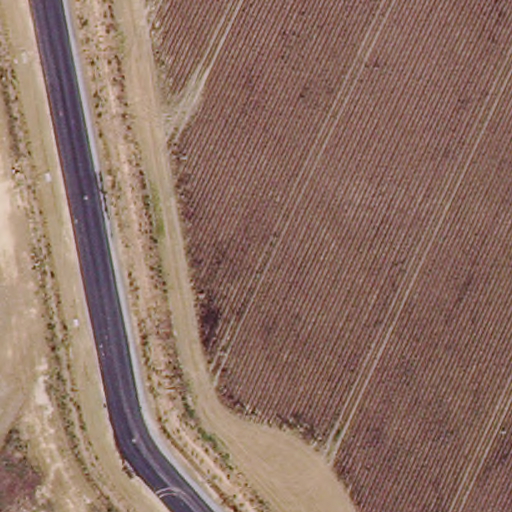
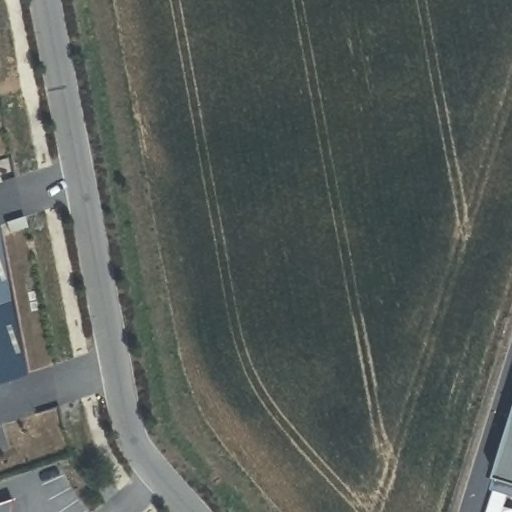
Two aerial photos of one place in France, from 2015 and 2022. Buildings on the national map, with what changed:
new [(27,376),(0,385),(0,249),(27,376)]
new [(512,437),(512,474),(501,471),(512,437)]
new [(512,487),(498,482),(501,471),(512,474),(512,487)]
unchanged [(9,496),(10,512),(0,512),(0,498),(9,496)]

